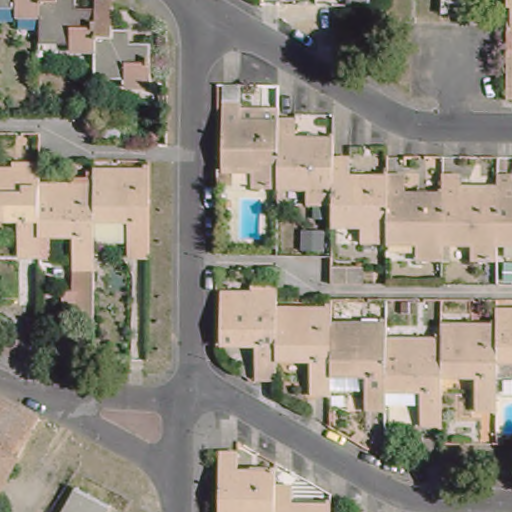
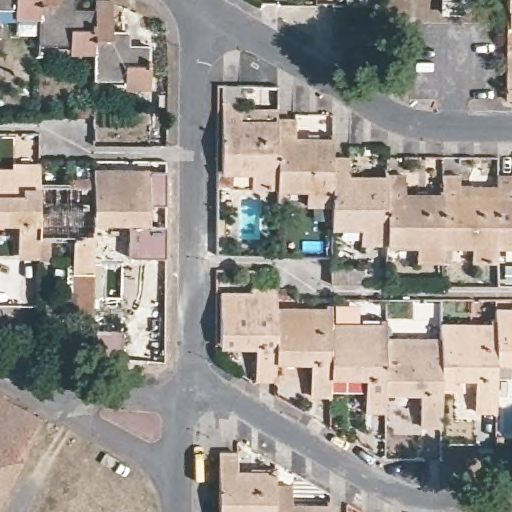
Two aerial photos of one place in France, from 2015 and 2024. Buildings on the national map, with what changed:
unchanged [(40,21),(13,20),(13,12),(0,12),(0,0),(40,0),(40,21)]
unchanged [(73,1),(73,12),(95,13),(95,53),(70,54),(70,44),(40,44),(40,21),(40,0),(59,0),(73,1)]
unchanged [(464,12),(443,13),(443,0),(464,0),(464,12)]
unchanged [(509,11),(509,0),(512,0),(512,11),(509,11)]
unchanged [(114,35),(128,35),(127,48),(150,48),(149,89),(125,89),(124,79),(95,80),(95,53),(95,13),(95,1),(113,2),(114,35)]
unchanged [(253,171),(222,170),(223,102),(241,102),(241,124),(253,125),(254,120),(277,120),(276,188),(253,188),(253,171)]
unchanged [(306,205),(307,189),(276,188),(277,120),(296,121),(295,142),(307,142),(308,138),(331,138),(331,157),(331,194),(331,206),(306,205)]
unchanged [(331,157),(353,158),(353,180),(362,180),(363,175),(387,175),(387,177),(386,245),(361,245),(363,227),(331,227),(331,206),(331,194),(331,157)]
unchanged [(43,234),(43,254),(22,253),(23,220),(0,220),(0,165),(43,167),(43,185),(43,234)]
unchanged [(151,303),(136,304),(136,277),(131,277),(132,224),(98,223),(98,187),(98,172),(153,173),(151,303)]
unchanged [(463,246),(458,246),(458,257),(442,256),(442,263),(419,263),(419,246),(386,245),(387,177),(409,178),(408,198),(419,198),(419,193),(442,193),(443,177),(462,177),(461,198),(473,199),(473,194),(497,195),(497,231),(497,247),(497,263),(473,263),(473,257),(464,257),(463,246)]
unchanged [(497,247),(497,231),(497,195),(498,178),(512,179),(512,247),(497,247)]
unchanged [(77,235),(43,234),(43,185),(98,187),(98,223),(98,272),(77,271),(77,235)]
unchanged [(228,295),(281,295),(280,311),(280,363),(280,382),(261,382),(261,346),(227,346),(228,295)]
unchanged [(316,363),(280,363),(280,311),(336,312),(335,325),(335,380),(335,397),(315,398),(316,363)]
unchanged [(501,364),(501,328),(501,313),(512,313),(512,364),(501,364)]
unchanged [(391,342),(391,396),(391,415),(371,414),(371,380),(335,380),(335,325),(391,326),(391,342)]
unchanged [(501,364),(500,416),(481,417),(481,382),(446,382),(446,342),(446,327),(501,328),(501,364)]
unchanged [(425,396),(391,396),(391,342),(446,342),(446,382),(446,430),(425,430),(425,396)]
unchanged [(0,495),(0,395),(43,418),(0,495)]
unchanged [(238,451),(238,471),(275,472),(275,484),(274,512),(220,512),(220,451),(238,451)]
unchanged [(274,512),(275,484),(295,485),(295,503),(329,504),(329,512),(274,512)]
demolished [(112,505),(108,512),(62,512),(76,486),(112,505)]

